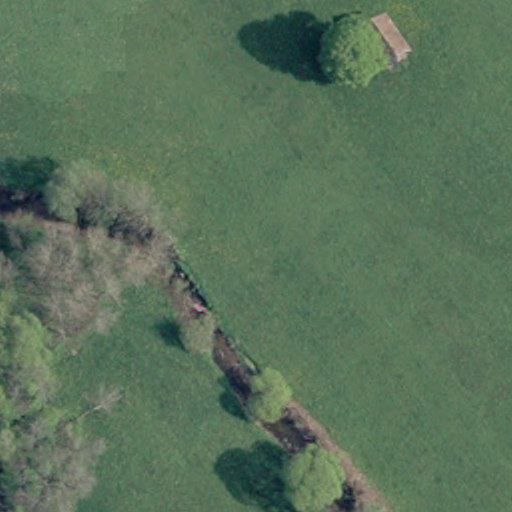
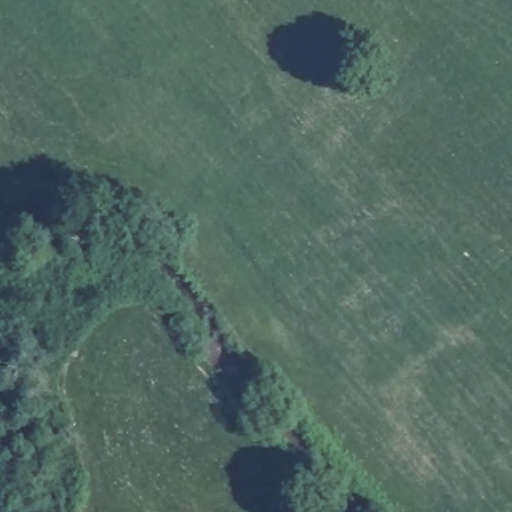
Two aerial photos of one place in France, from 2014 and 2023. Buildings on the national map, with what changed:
unchanged [(406,57),(385,71),(361,38),(383,23),(406,57)]

